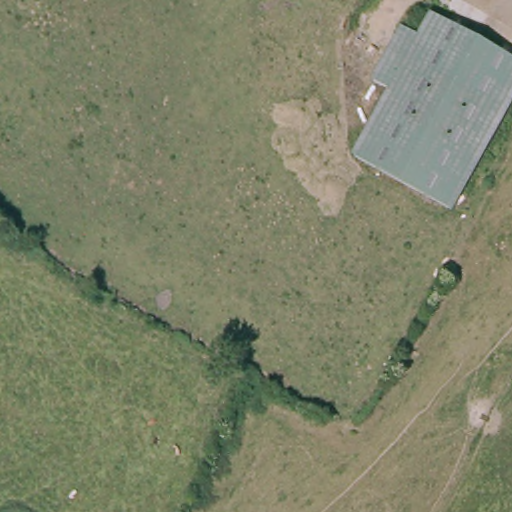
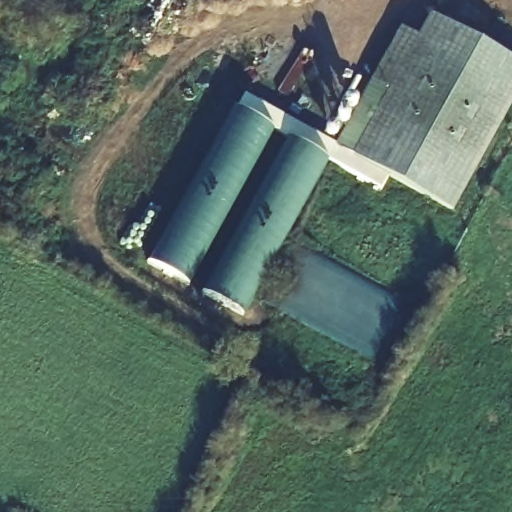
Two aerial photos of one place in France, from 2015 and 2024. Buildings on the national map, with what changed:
unchanged [(347,157),(385,91),(367,81),(397,27),(415,37),(427,15),(512,63),(512,93),(445,212),(347,157)]
new [(347,157),(386,178),(380,188),(329,161),(243,315),(146,262),(245,94),(322,135),(334,124),(347,99),(356,102),(367,81),(385,91),(347,157)]

